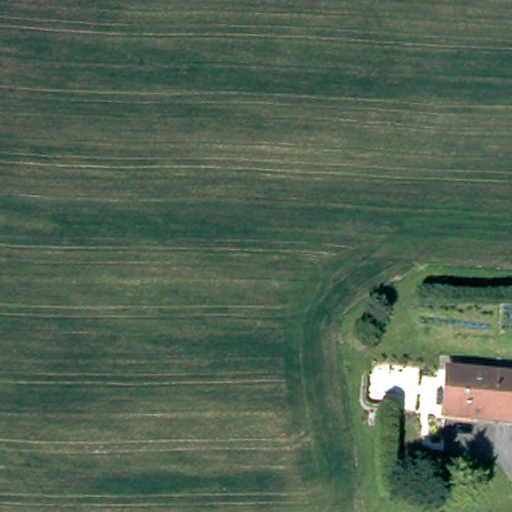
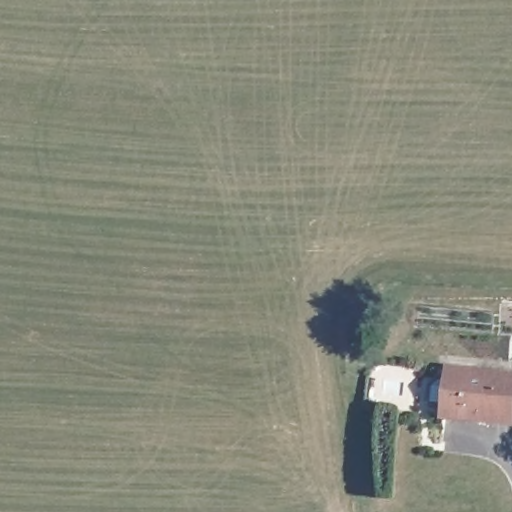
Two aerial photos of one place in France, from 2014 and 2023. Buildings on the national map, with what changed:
unchanged [(510,417),(445,416),(447,370),(512,372),(510,417)]

